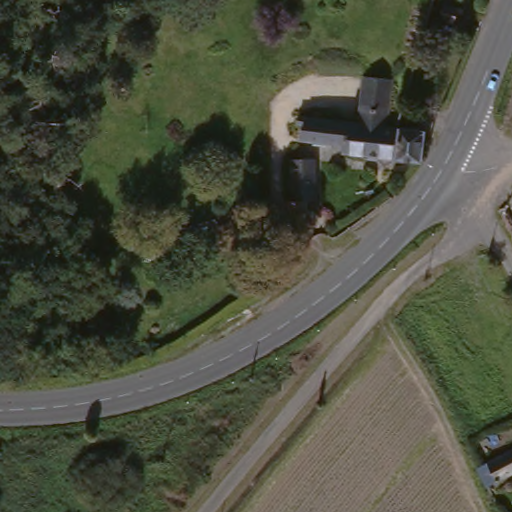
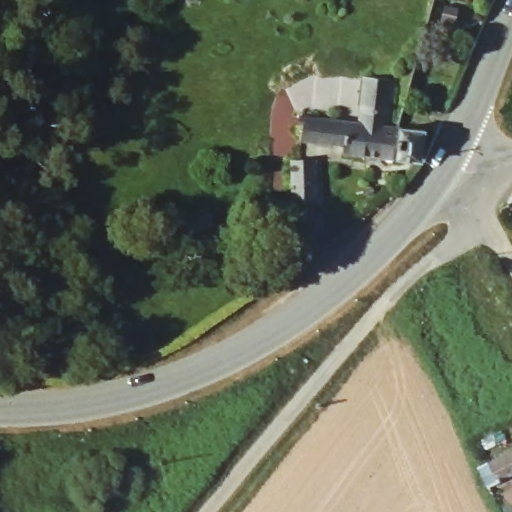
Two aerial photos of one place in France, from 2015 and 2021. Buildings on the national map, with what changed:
unchanged [(442,18),(446,6),(456,10),(453,21),(442,18)]
unchanged [(306,131),(301,130),(304,119),(348,124),(353,103),(357,78),(385,81),(381,105),(377,128),(428,133),(426,166),(398,161),(396,168),(391,170),(383,169),(381,164),(381,160),(347,155),(347,150),(304,145),(306,131)]
unchanged [(313,199),(291,200),(289,166),(291,160),(313,160),(313,199)]
unchanged [(512,477),(483,491),(475,475),(495,467),(494,464),(512,455),(512,477)]

